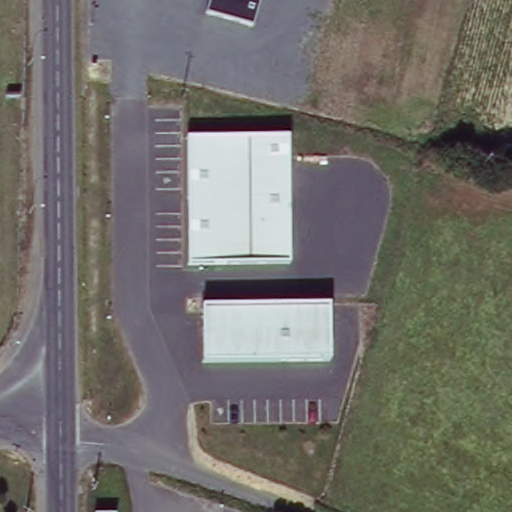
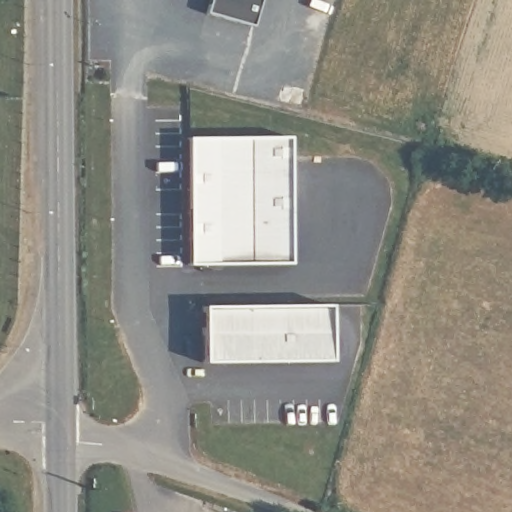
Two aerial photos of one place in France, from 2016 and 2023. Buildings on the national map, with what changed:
unchanged [(206,12),(210,0),(262,0),(255,26),(206,12)]
unchanged [(185,139),(290,135),(291,264),(186,265),(185,139)]
unchanged [(201,305),(330,304),(331,362),(200,362),(201,305)]

